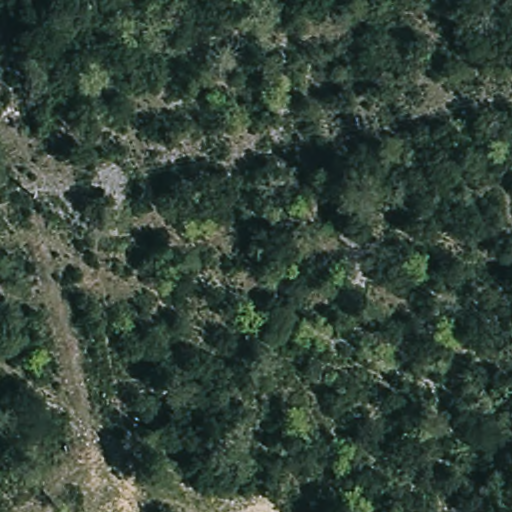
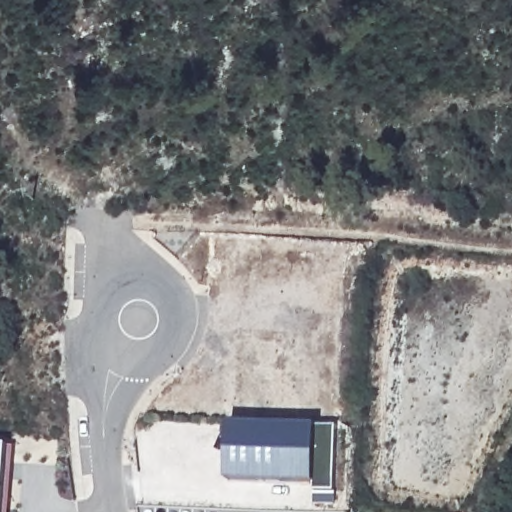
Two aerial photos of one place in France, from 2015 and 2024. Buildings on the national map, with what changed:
new [(324,434),(322,489),(232,485),(231,428),(324,434)]
new [(0,445),(10,446),(5,512),(0,512),(0,445)]

